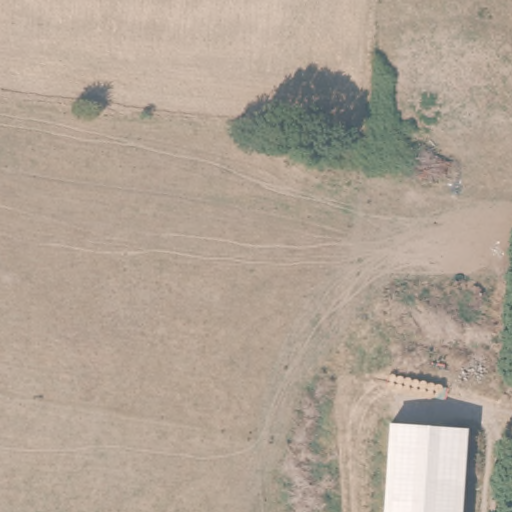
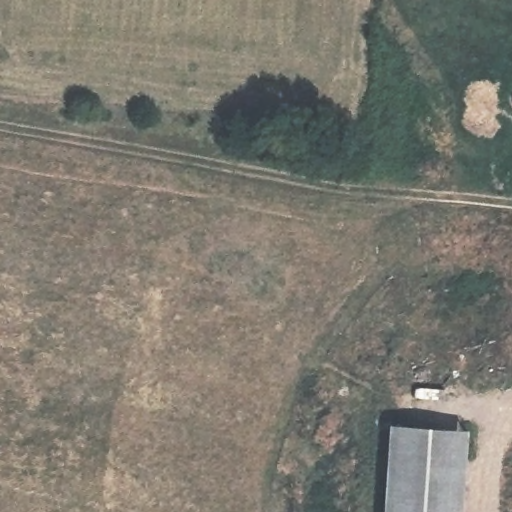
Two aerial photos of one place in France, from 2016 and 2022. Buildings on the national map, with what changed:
unchanged [(462,512),(382,512),(388,422),(469,428),(462,512)]

